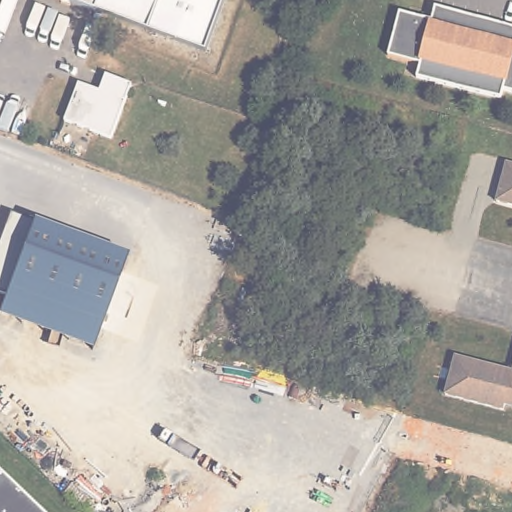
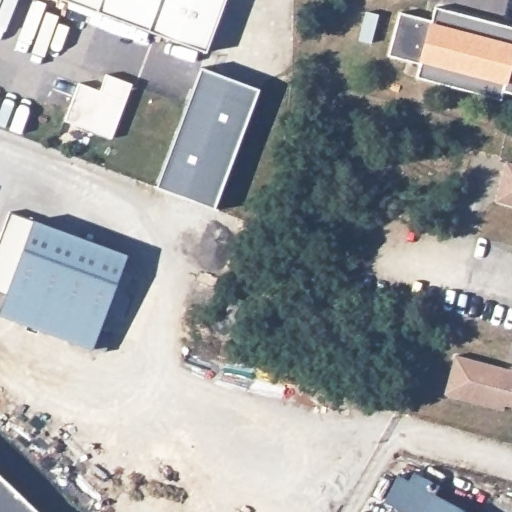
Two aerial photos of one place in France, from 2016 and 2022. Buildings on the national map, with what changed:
unchanged [(98,13),(64,0),(103,0),(98,13)]
unchanged [(103,0),(225,0),(206,53),(98,13),(103,0)]
unchanged [(434,6),(512,26),(512,96),(502,94),(500,102),(415,80),(419,63),(387,55),(398,11),(430,20),(434,6)]
new [(200,67),(259,89),(214,209),(153,187),(200,67)]
unchanged [(100,94),(106,77),(134,87),(112,141),(65,122),(80,86),(100,94)]
unchanged [(512,164),(512,205),(493,201),(504,162),(512,164)]
unchanged [(0,316),(0,310),(35,220),(128,256),(93,350),(0,316)]
unchanged [(512,368),(512,407),(504,405),(503,411),(444,396),(453,357),(504,370),(511,371),(512,368)]
new [(397,474),(408,480),(412,471),(439,486),(435,493),(469,512),(400,512),(382,503),(397,474)]
unchanged [(0,512),(0,473),(41,512),(0,512)]

